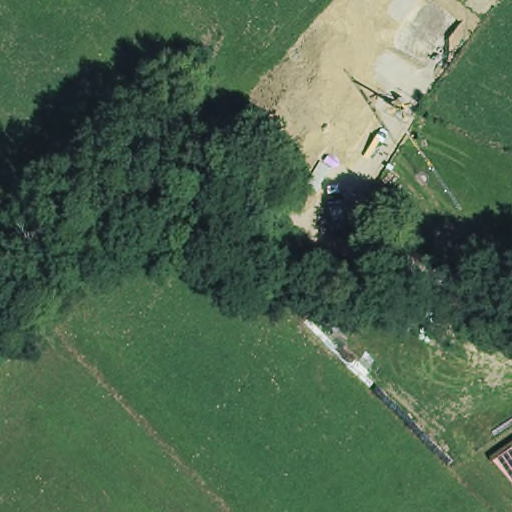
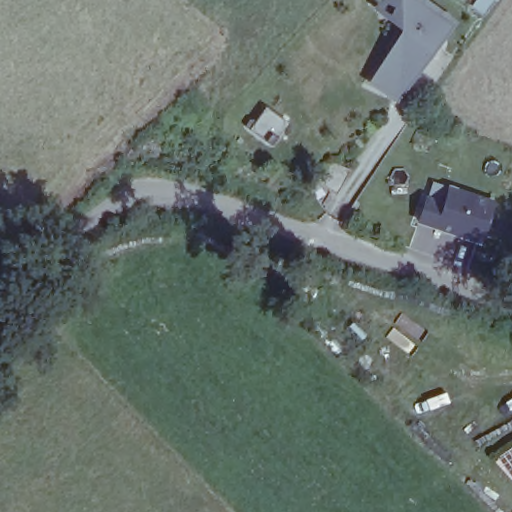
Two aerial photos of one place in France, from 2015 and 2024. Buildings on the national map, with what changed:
new [(396,102),(366,84),(401,31),(371,8),(380,0),(429,0),(457,21),(396,102)]
new [(497,1),(496,0),(498,0),(497,1)]
new [(482,245),(434,231),(448,186),(495,201),(482,245)]
unchanged [(498,461),(512,450),(512,481),(498,461)]

